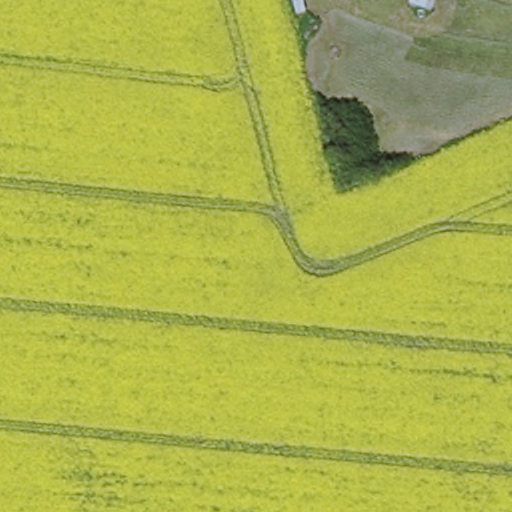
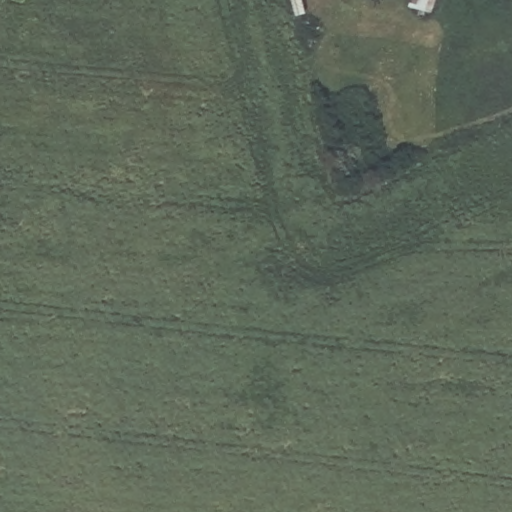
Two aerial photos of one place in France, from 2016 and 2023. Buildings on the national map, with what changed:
unchanged [(436,0),(433,10),(412,2),(412,0),(436,0)]

